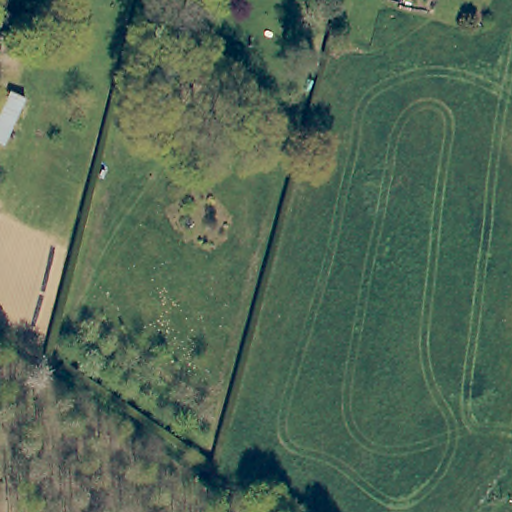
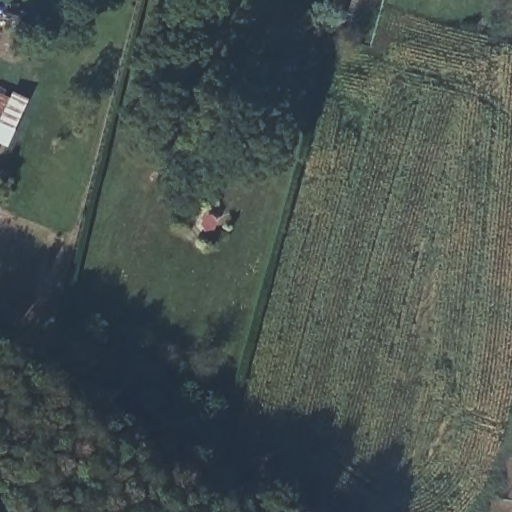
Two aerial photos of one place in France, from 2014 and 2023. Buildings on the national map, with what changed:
[]

